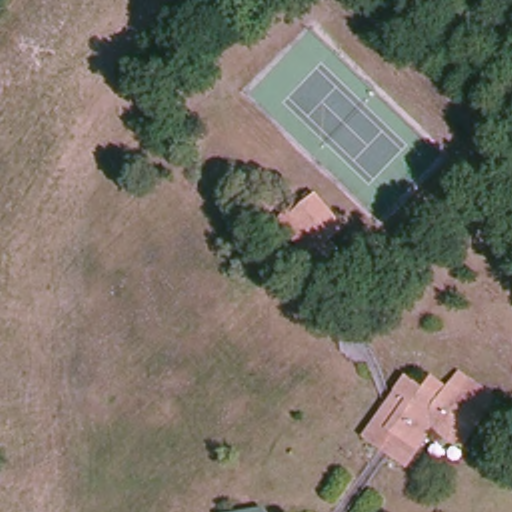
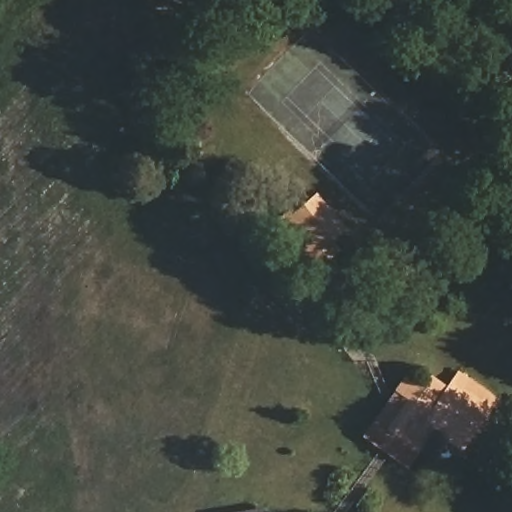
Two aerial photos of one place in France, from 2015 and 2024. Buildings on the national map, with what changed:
unchanged [(323,255),(292,223),(321,194),(349,229),(323,255)]
unchanged [(447,424),(428,447),(410,469),(370,437),(386,414),(408,383),(416,374),(432,386),(442,370),(460,384),(465,379),(500,404),(481,432),(473,442),(447,424)]
unchanged [(251,512),(267,510),(269,512),(251,512)]

